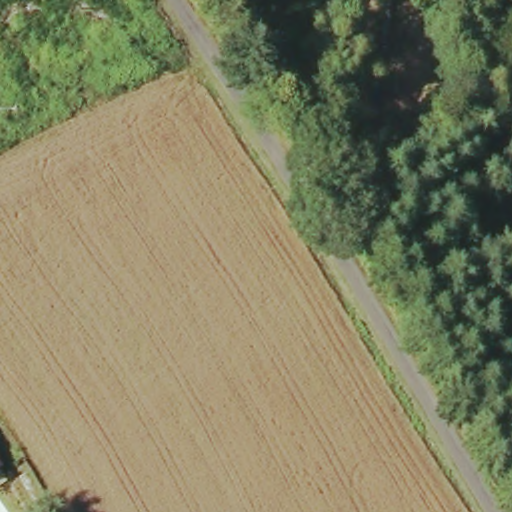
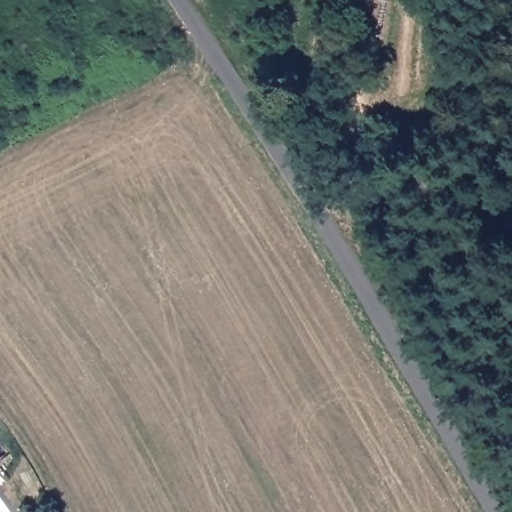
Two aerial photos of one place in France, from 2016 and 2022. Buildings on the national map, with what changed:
unchanged [(2,460),(0,461),(0,458),(2,460)]

